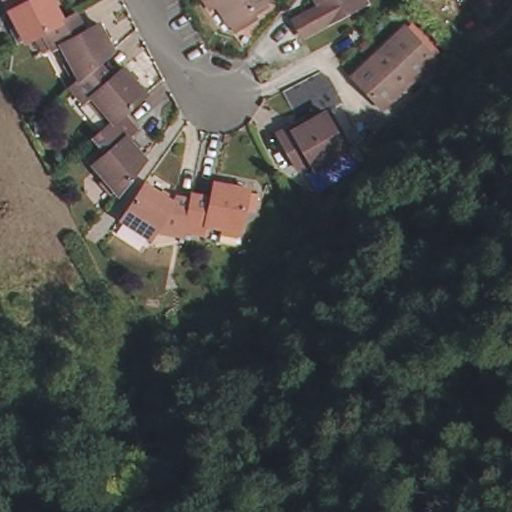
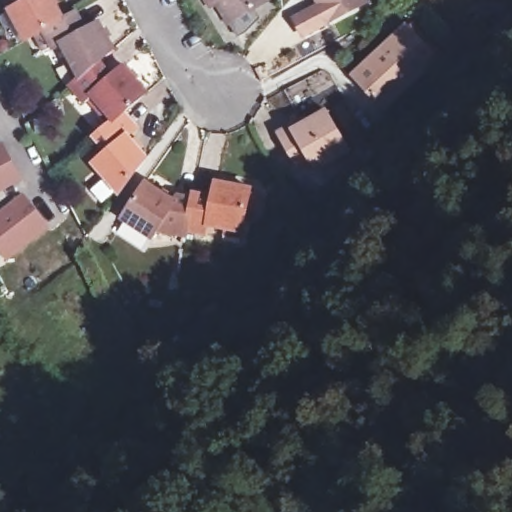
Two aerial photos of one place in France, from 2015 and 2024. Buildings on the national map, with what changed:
unchanged [(112,180),(102,167),(114,156),(100,140),(116,126),(105,114),(110,108),(101,98),(92,106),(76,89),(80,85),(69,66),(77,62),(68,46),(60,51),(49,33),(30,43),(25,46),(18,34),(24,30),(15,14),(27,7),(23,0),(57,0),(69,21),(81,15),(91,32),(105,25),(119,50),(105,64),(120,81),(132,70),(154,93),(128,116),(142,131),(134,139),(152,160),(126,196),(122,192),(118,196),(107,184),(112,180)]
unchanged [(234,30),(222,10),(214,15),(210,7),(207,4),(213,0),(216,0),(217,2),(222,0),(267,0),(272,7),(255,17),(260,25),(239,38),(234,30)]
unchanged [(313,38),(307,27),(315,22),(312,16),(329,7),(325,0),(374,0),(375,3),(313,38)]
unchanged [(442,59),(388,109),(358,78),(375,63),(400,39),(412,28),(442,59)]
unchanged [(354,155),(322,173),(317,166),(305,174),(284,137),(297,129),(310,121),(313,126),(331,116),(354,155)]
new [(24,180),(7,190),(14,201),(24,193),(52,229),(9,261),(0,251),(0,145),(4,143),(24,180)]
unchanged [(140,243),(144,237),(129,227),(152,193),(179,210),(182,206),(200,209),(201,201),(221,204),(224,193),(257,198),(250,239),(246,239),(245,245),(232,243),(234,237),(217,234),(214,244),(195,241),(194,247),(162,240),(157,247),(155,245),(151,250),(140,243)]
unchanged [(208,343),(215,355),(185,374),(177,363),(208,343)]

